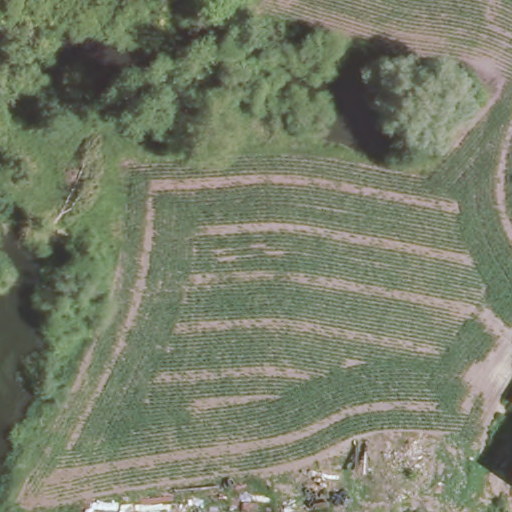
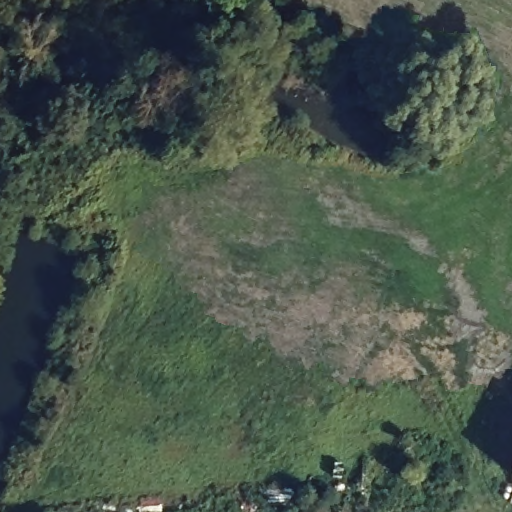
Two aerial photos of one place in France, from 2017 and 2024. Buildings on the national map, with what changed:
unchanged [(512,465),(512,487),(502,480),(512,465)]

